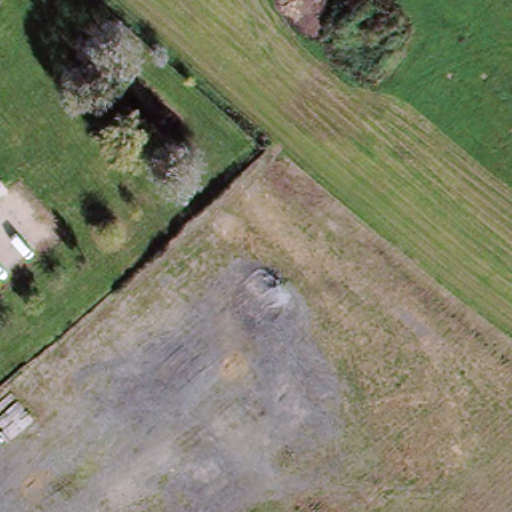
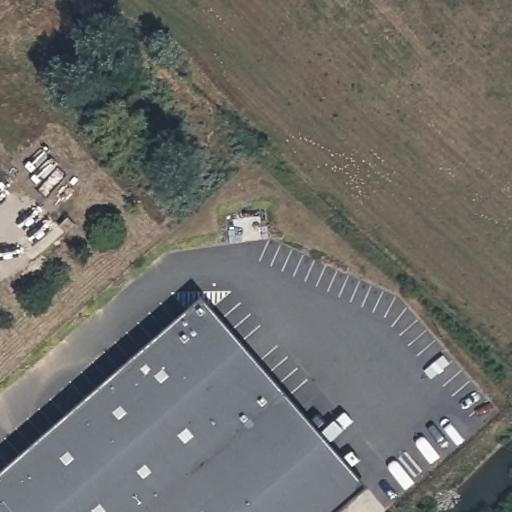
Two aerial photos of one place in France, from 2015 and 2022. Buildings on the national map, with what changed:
new [(291,401),(223,460),(267,512),(0,512),(0,485),(206,305),(291,401)]
new [(373,494),(353,512),(267,512),(223,460),(291,401),(373,494)]

